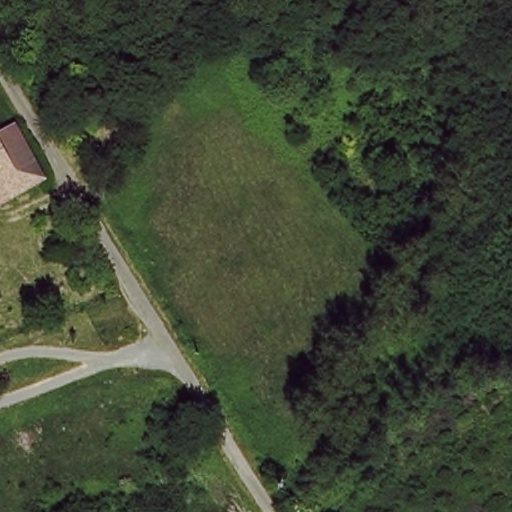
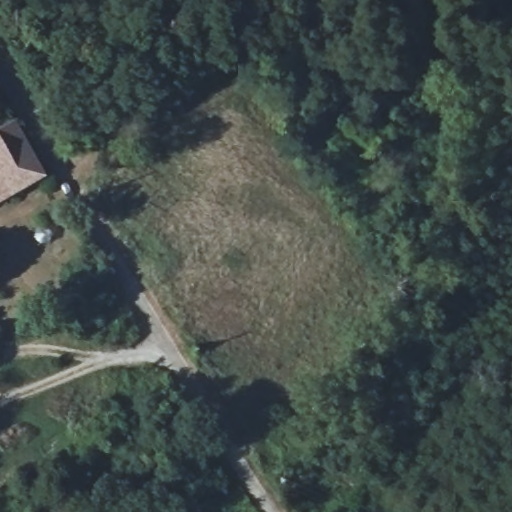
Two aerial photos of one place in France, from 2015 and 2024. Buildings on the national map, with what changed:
unchanged [(50,173),(0,203),(0,127),(20,116),(50,173)]

